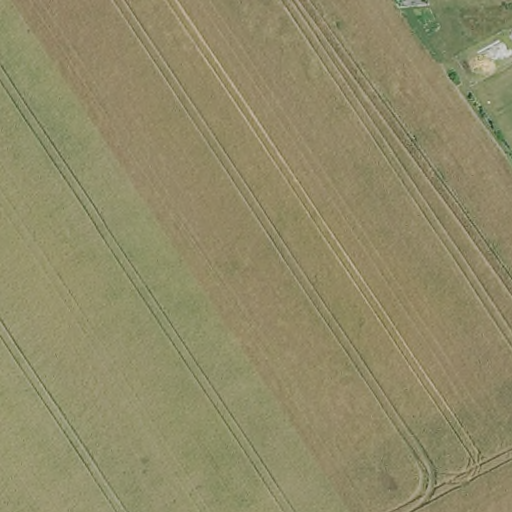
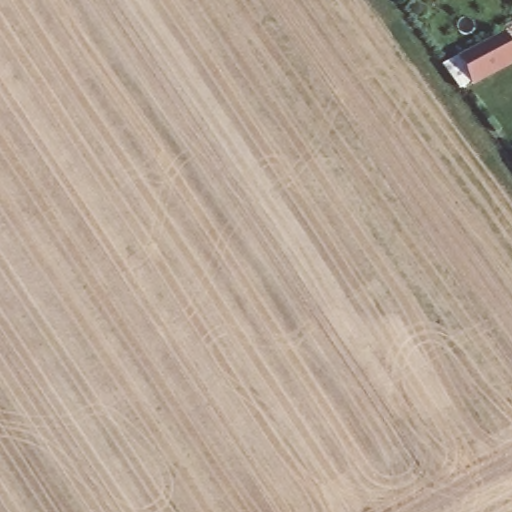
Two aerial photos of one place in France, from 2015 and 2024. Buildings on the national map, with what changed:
new [(512,48),(512,67),(472,86),(456,57),(504,34),(512,48)]

